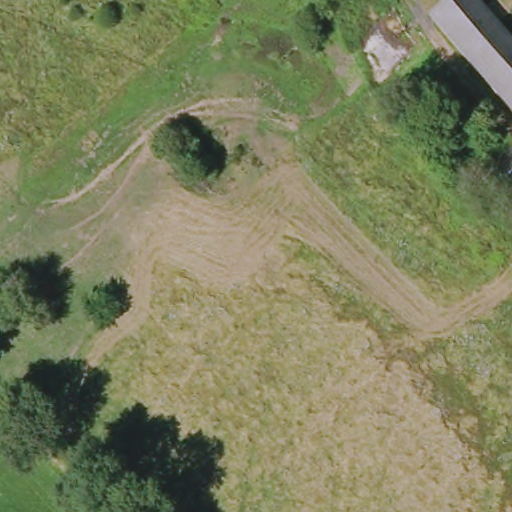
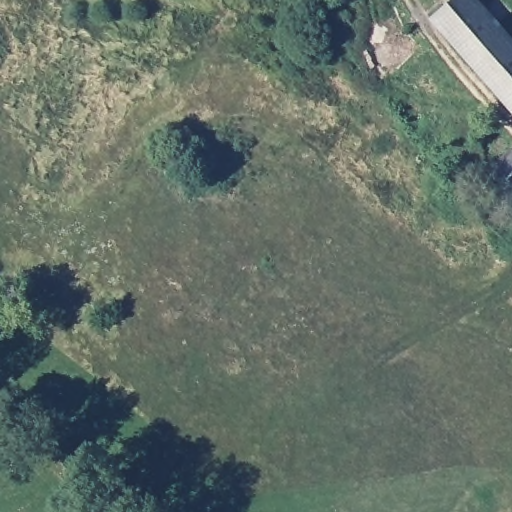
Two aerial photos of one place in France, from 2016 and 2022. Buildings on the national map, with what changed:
unchanged [(455,0),(469,0),(512,49),(512,115),(431,21),(455,0)]
unchanged [(512,152),(512,199),(511,200),(485,176),(510,149),(512,152)]

